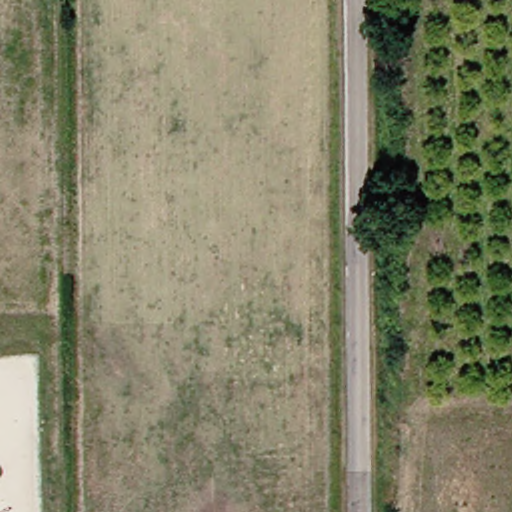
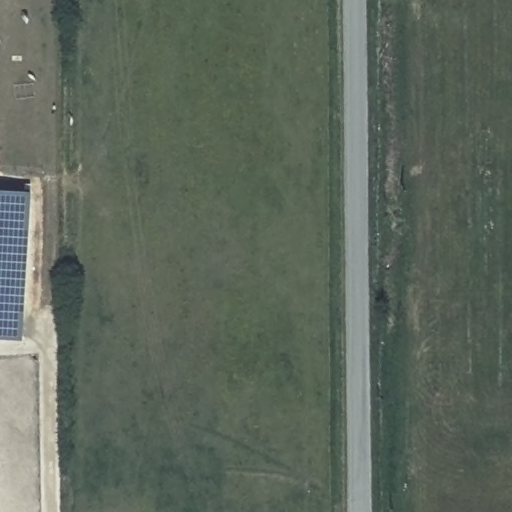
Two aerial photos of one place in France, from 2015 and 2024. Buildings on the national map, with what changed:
new [(0,339),(0,191),(33,193),(23,340),(0,339)]

